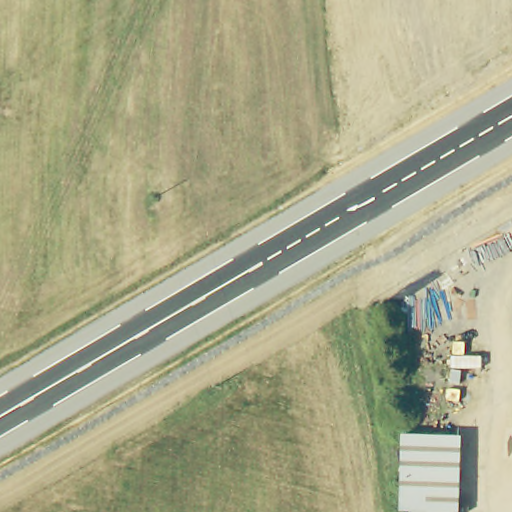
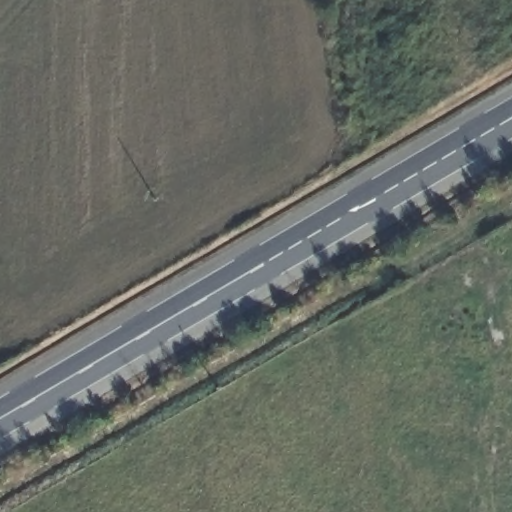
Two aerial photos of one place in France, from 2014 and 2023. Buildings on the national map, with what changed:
demolished [(459,512),(411,512),(401,511),(404,434),(462,436),(459,512)]

